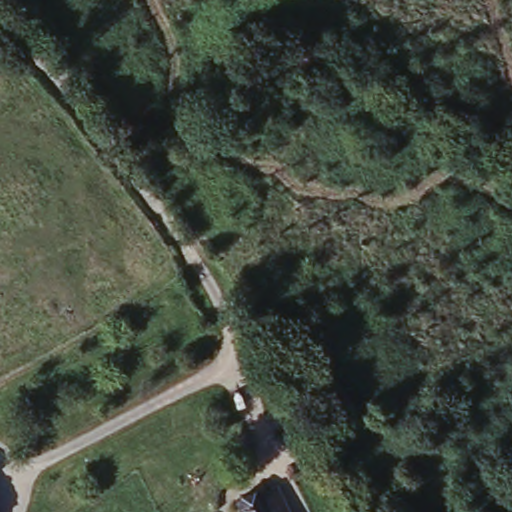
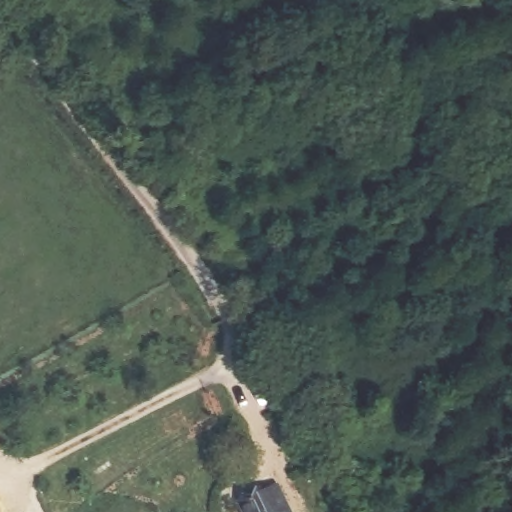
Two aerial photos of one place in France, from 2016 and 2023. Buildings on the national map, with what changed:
unchanged [(238,494),(262,484),(263,485),(277,479),(286,501),(291,512),(244,512),(237,495),(238,494)]

